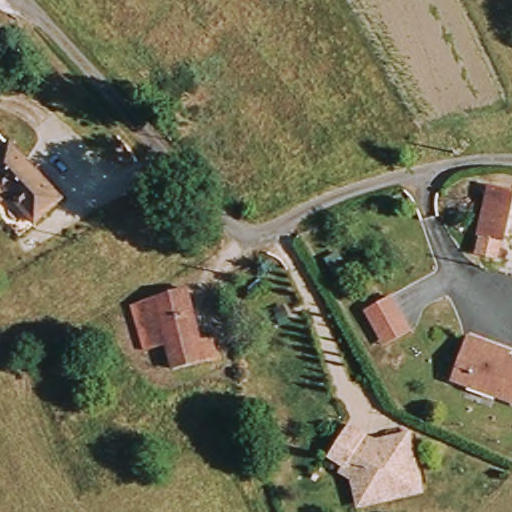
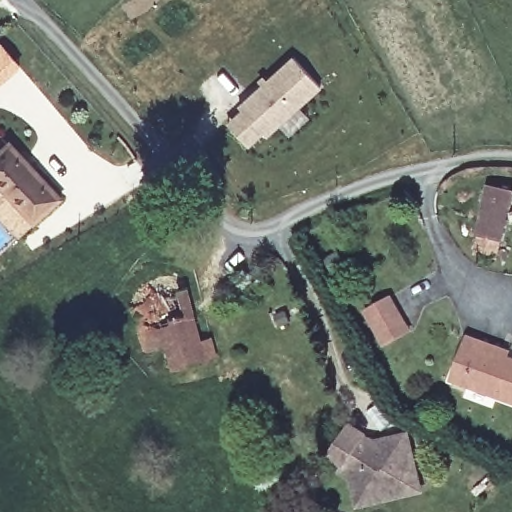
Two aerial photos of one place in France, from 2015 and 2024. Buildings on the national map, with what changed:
new [(239,108),(294,58),(321,88),(298,108),(308,119),(290,135),(280,124),(266,137),(263,133),(248,147),(228,124),(242,111),(239,108)]
unchanged [(33,222),(0,185),(0,164),(14,152),(58,200),(33,222)]
unchanged [(497,249),(477,245),(486,197),(507,202),(497,249)]
unchanged [(325,264),(336,258),(345,274),(333,280),(325,264)]
unchanged [(137,311),(187,294),(201,340),(212,335),(216,357),(178,370),(171,346),(148,353),(142,331),(137,311)]
unchanged [(387,349),(381,338),(368,315),(391,301),(404,326),(410,337),(387,349)]
unchanged [(469,344),(486,351),(512,361),(512,364),(511,368),(512,369),(512,407),(454,384),(469,344)]
unchanged [(331,457),(352,427),(366,436),(369,445),(408,436),(421,482),(373,494),(367,473),(351,463),(348,468),(331,457)]
unchanged [(373,494),(421,482),(423,492),(361,507),(354,483),(343,475),(348,468),(351,463),(367,473),(373,494)]

